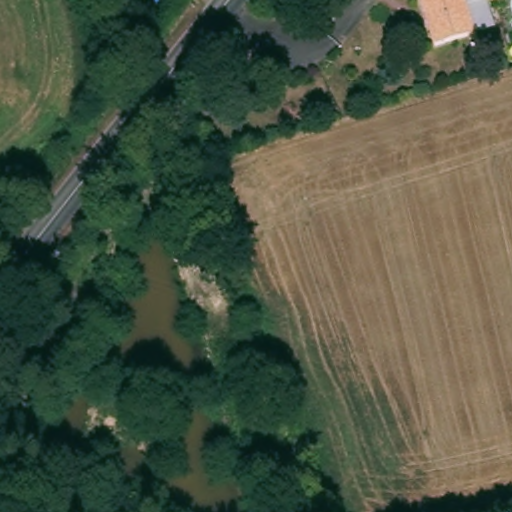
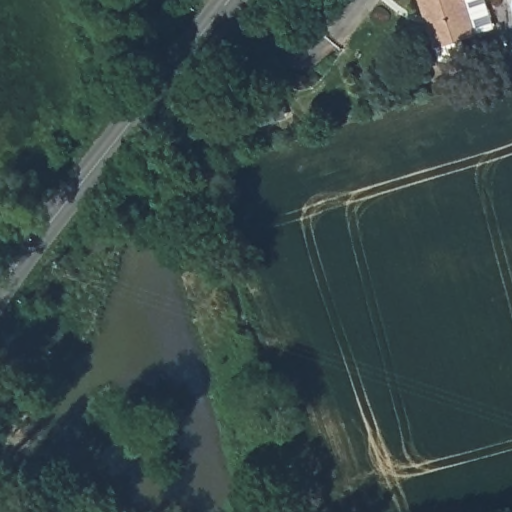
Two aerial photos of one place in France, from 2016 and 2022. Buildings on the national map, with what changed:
unchanged [(438,49),(422,0),(467,0),(479,34),(438,49)]

